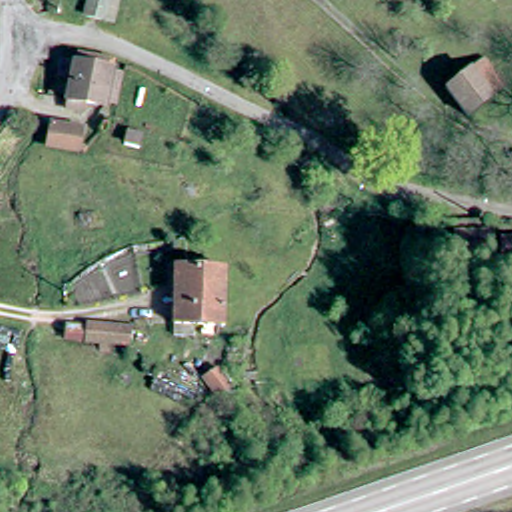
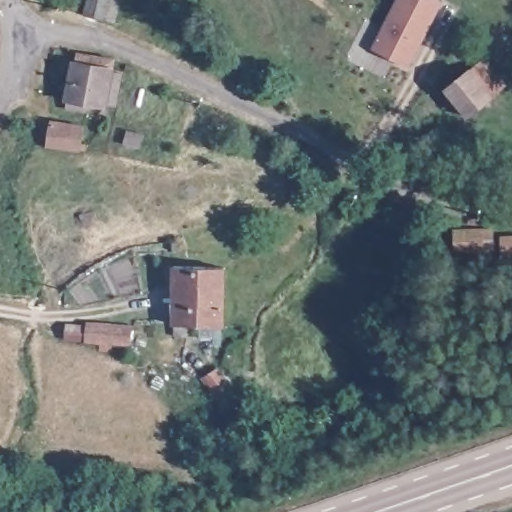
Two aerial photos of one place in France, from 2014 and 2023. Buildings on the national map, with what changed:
unchanged [(90,0),(109,0),(105,22),(86,18),(90,0)]
new [(395,0),(439,0),(442,1),(408,66),(372,47),(395,0)]
unchanged [(121,116),(110,114),(91,112),(90,118),(73,116),(79,74),(81,62),(114,67),(118,68),(116,79),(126,81),(121,116)]
unchanged [(442,99),(466,81),(481,69),(501,95),(487,107),(465,125),(442,99)]
unchanged [(50,126),(77,129),(78,143),(81,145),(80,151),(50,149),(50,126)]
unchanged [(457,234),(494,233),(494,251),(467,252),(458,252),(457,234)]
unchanged [(504,241),(512,241),(512,259),(504,259),(504,241)]
unchanged [(177,288),(178,269),(191,269),(193,269),(226,270),(225,330),(216,330),(196,329),(195,333),(176,334),(177,288)]
unchanged [(69,327),(88,327),(90,326),(111,326),(113,328),(126,330),(124,345),(69,342),(69,327)]

